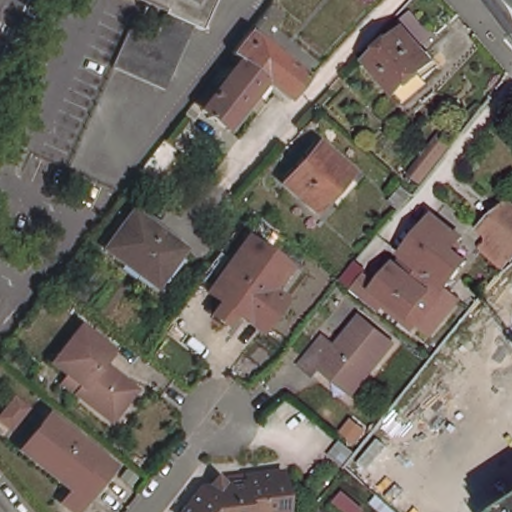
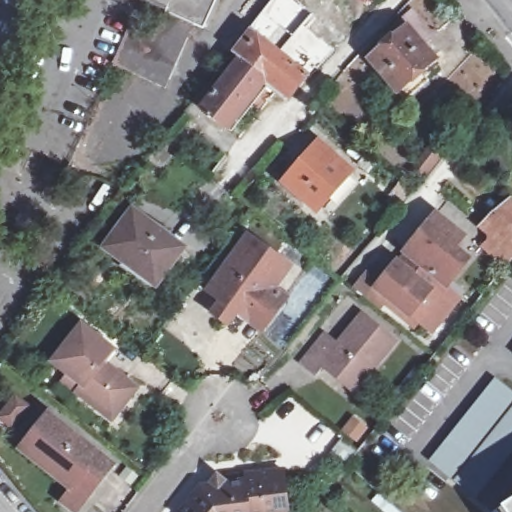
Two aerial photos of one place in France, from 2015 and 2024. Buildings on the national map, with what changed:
unchanged [(202,26),(193,22),(165,9),(156,5),(145,0),(213,0),(202,26)]
unchanged [(288,13),(279,25),(275,23),(265,39),(310,75),(290,99),(286,96),(278,89),(267,80),(243,60),(235,53),(274,2),(288,13)]
unchanged [(193,22),(162,85),(110,61),(127,25),(152,36),(165,9),(193,22)]
unchanged [(395,102),(387,93),(362,62),(398,30),(392,23),(403,11),(424,35),(412,45),(425,61),(407,77),(410,81),(415,86),(395,102)]
unchanged [(267,80),(227,129),(205,111),(217,97),(212,92),(220,81),(225,85),(243,60),(267,80)]
unchanged [(160,139),(162,140),(176,152),(154,181),(137,168),(160,139)]
unchanged [(283,185),(317,145),(347,169),(313,209),(283,185)]
unchanged [(487,238),(477,227),(512,197),(512,253),(498,264),(480,243),(487,238)]
unchanged [(103,246),(132,209),(187,251),(160,288),(103,246)]
unchanged [(392,262),(395,264),(403,253),(402,250),(430,213),(458,235),(448,247),(464,259),(444,285),(434,278),(425,288),(427,289),(406,315),(372,288),(392,262)]
unchanged [(235,312),(227,323),(214,313),(222,302),(210,292),(213,287),(250,237),(290,264),(272,289),(285,298),(267,324),(262,331),(235,312)]
unchanged [(432,337),(418,326),(413,332),(382,308),(378,311),(340,280),(356,260),(368,270),(366,273),(377,281),(372,288),(406,315),(427,289),(425,288),(434,278),(444,285),(462,299),(432,337)]
unchanged [(325,367),(318,375),(304,364),(326,337),(337,346),(361,316),(395,342),(360,386),(356,391),(325,367)]
unchanged [(67,373),(52,361),(78,325),(110,349),(100,361),(132,386),(108,416),(74,390),(61,380),(67,373)]
new [(512,392),(512,453),(475,500),(428,462),(495,378),(512,392)]
unchanged [(76,511),(62,500),(75,484),(25,442),(49,413),(113,465),(76,511)]
unchanged [(211,483),(219,474),(229,481),(251,478),(250,471),(285,467),(292,508),(290,512),(183,512),(205,483),(211,483)]
unchanged [(512,512),(502,512),(512,505),(512,512)]

